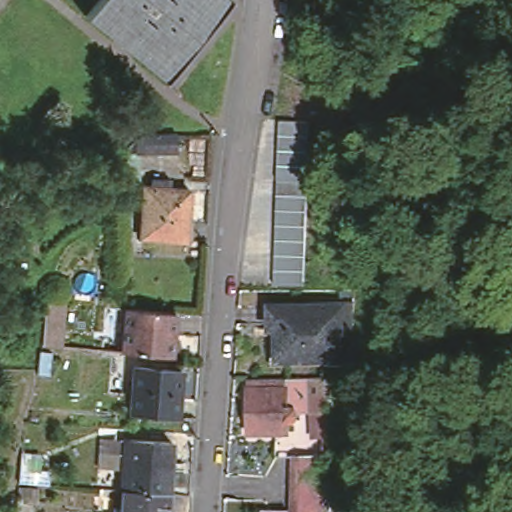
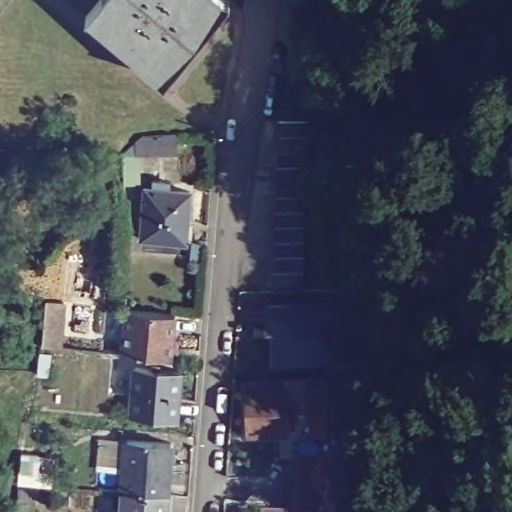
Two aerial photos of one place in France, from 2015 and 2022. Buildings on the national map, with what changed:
unchanged [(84,9),(92,0),(221,0),(163,71),(84,9)]
unchanged [(174,135),(176,155),(143,156),(134,156),(133,144),(142,137),(174,135)]
unchanged [(152,183),(172,184),(171,193),(191,194),(186,243),(141,239),(146,190),(151,191),(152,183)]
unchanged [(272,328),(272,322),(269,321),(266,319),(266,300),(341,298),(341,328),(272,328)]
unchanged [(114,337),(116,306),(123,306),(174,311),(173,318),(176,318),(173,355),(122,350),(113,350),(114,337)]
unchanged [(341,353),(273,353),(272,328),(341,328),(341,353)]
unchanged [(169,410),(124,405),(129,360),(174,364),(169,410)]
unchanged [(241,406),(240,386),(240,376),(299,376),(299,405),(300,410),(291,410),(288,415),(284,419),(281,421),(281,430),(241,431),(241,406)]
unchanged [(183,463),(163,462),(162,465),(116,462),(119,413),(164,416),(163,443),(183,444),(183,463)]
unchanged [(19,465),(20,455),(38,457),(35,486),(34,492),(16,489),(17,484),(19,465)]
unchanged [(289,499),(288,480),(288,459),(319,458),(319,480),(319,499),(319,512),(289,512),(289,499)]
unchanged [(93,487),(106,489),(108,478),(114,479),(116,462),(162,465),(155,511),(118,508),(109,508),(89,506),(93,487)]
unchanged [(118,508),(155,511),(160,512),(118,512),(118,508)]

